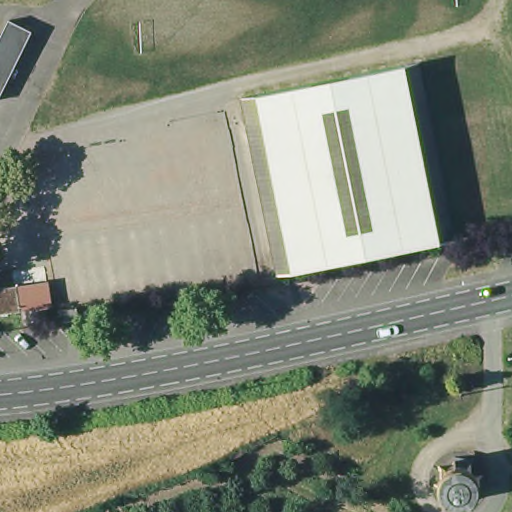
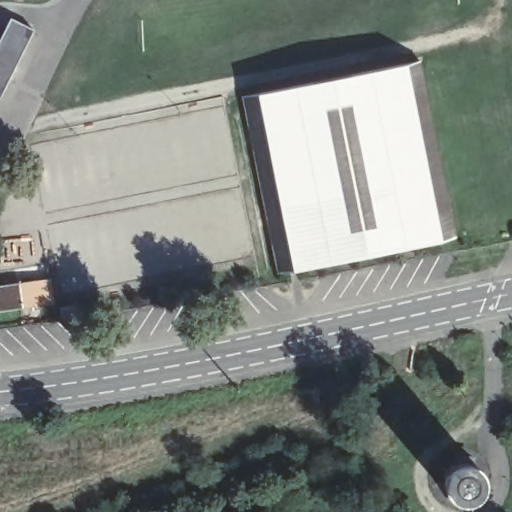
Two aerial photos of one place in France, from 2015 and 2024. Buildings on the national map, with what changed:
unchanged [(7,20),(32,31),(0,94),(0,34),(7,20)]
unchanged [(235,98),(412,63),(445,239),(269,275),(235,98)]
unchanged [(22,282),(25,307),(0,311),(0,285),(22,282)]

